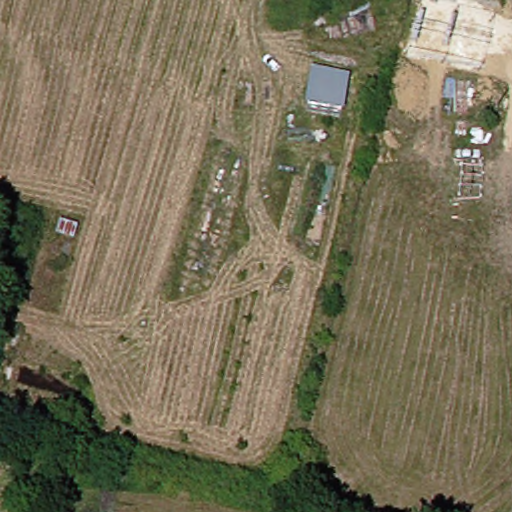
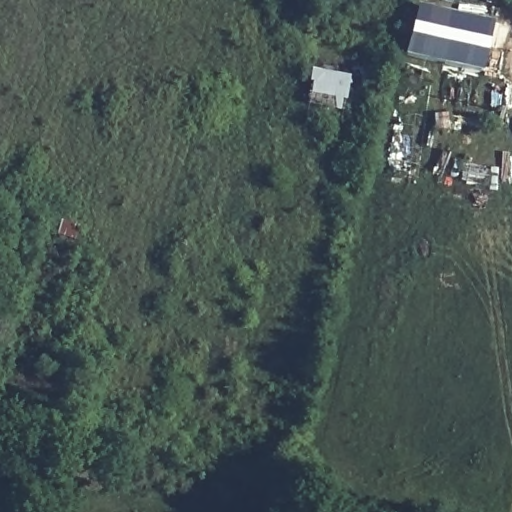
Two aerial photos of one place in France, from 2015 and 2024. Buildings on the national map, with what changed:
new [(416,6),(493,22),(482,71),(404,54),(416,6)]
new [(304,104),(311,69),(349,77),(343,114),(304,104)]

